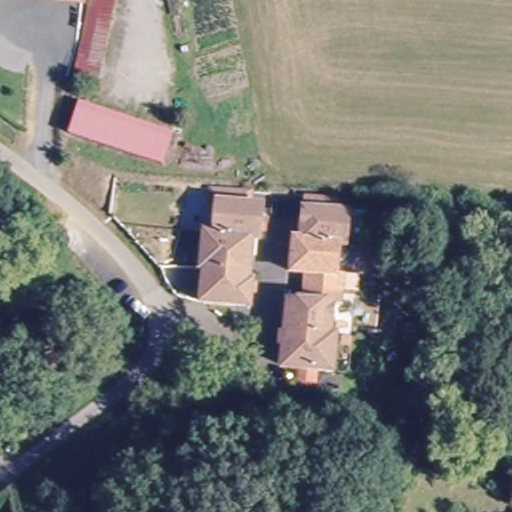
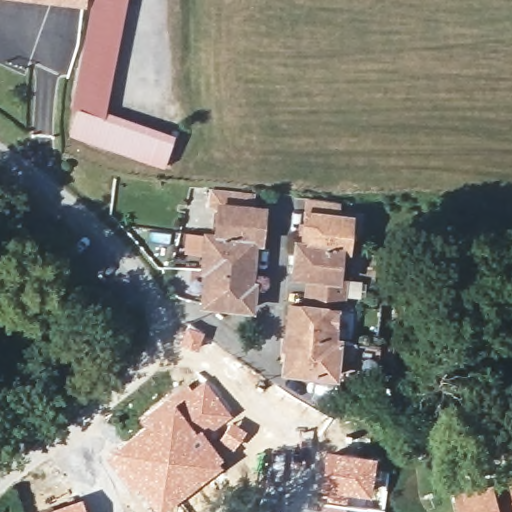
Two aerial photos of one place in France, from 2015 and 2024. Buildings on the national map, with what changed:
unchanged [(88,0),(86,9),(22,0),(88,0)]
unchanged [(69,79),(86,9),(88,0),(115,0),(99,84),(69,79)]
unchanged [(78,96),(177,130),(164,168),(65,134),(78,96)]
unchanged [(250,253),(254,254),(251,287),(255,288),(252,311),(205,307),(207,273),(204,273),(207,238),(217,239),(220,210),(212,209),(214,193),(244,196),(252,197),(251,212),(265,213),(263,225),(267,225),(268,225),(268,228),(267,237),(262,237),(261,245),(251,244),(250,253)]
unchanged [(288,309),(308,311),(310,281),(290,279),(293,248),(300,248),(304,203),(334,206),(332,221),(347,222),(344,254),(337,253),(335,282),(341,283),(338,315),(333,314),(331,343),(336,344),(332,379),(295,374),(287,374),(288,363),(283,362),(285,332),(288,309)]
new [(142,425),(139,421),(186,384),(190,389),(205,380),(234,418),(231,420),(246,433),(223,462),(225,464),(159,512),(157,512),(137,487),(131,490),(104,455),(142,425)]
new [(323,450),(376,456),(367,507),(316,501),(323,450)]
new [(452,491),(492,482),(512,477),(512,512),(458,512),(452,491)]
new [(82,497),(87,512),(39,512),(82,497)]
new [(316,501),(367,507),(382,510),(382,512),(315,512),(316,501)]

